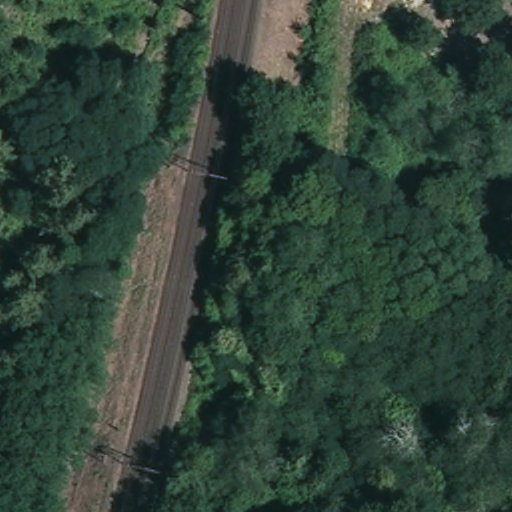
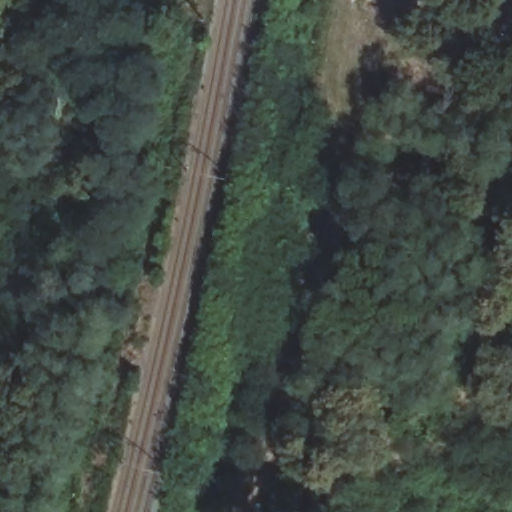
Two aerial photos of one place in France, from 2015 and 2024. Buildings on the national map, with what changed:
unchanged [(466,250),(474,233),(512,252),(512,256),(505,271),(466,250)]
unchanged [(334,244),(371,263),(352,299),(315,280),(334,244)]

